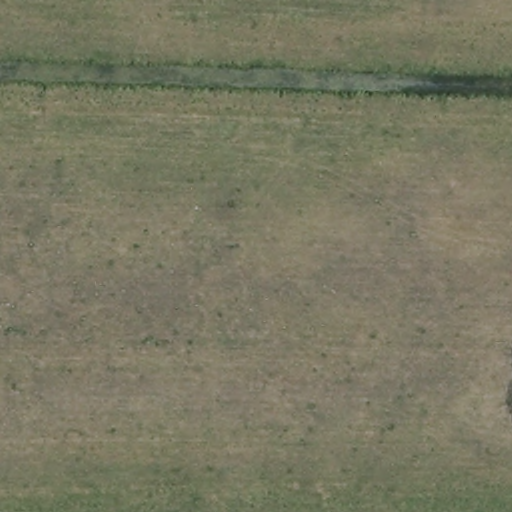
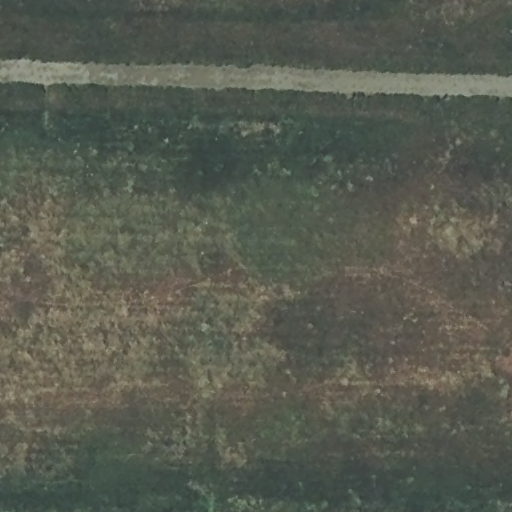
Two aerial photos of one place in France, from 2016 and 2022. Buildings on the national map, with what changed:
[]

